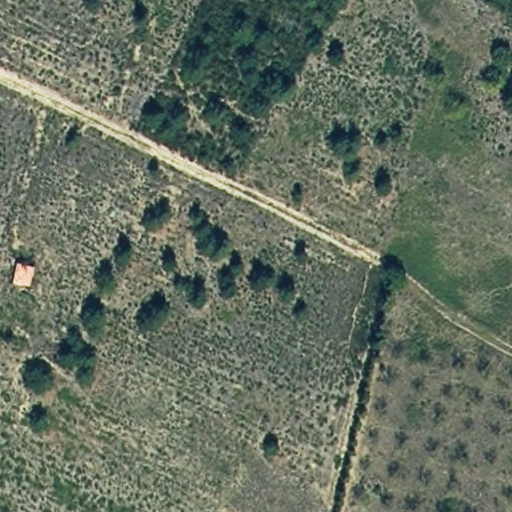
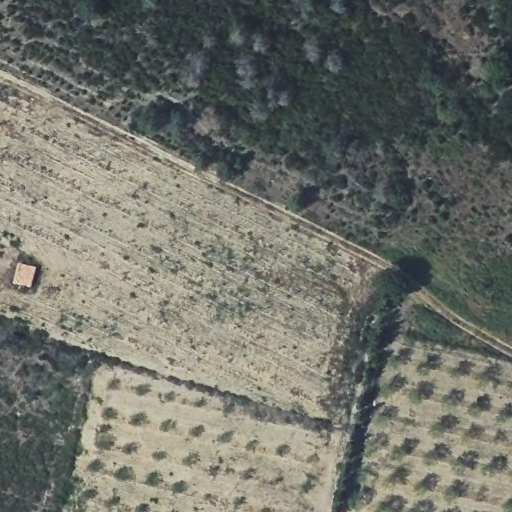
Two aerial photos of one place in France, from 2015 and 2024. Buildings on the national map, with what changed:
unchanged [(14,265),(31,270),(26,289),(9,284),(14,265)]

